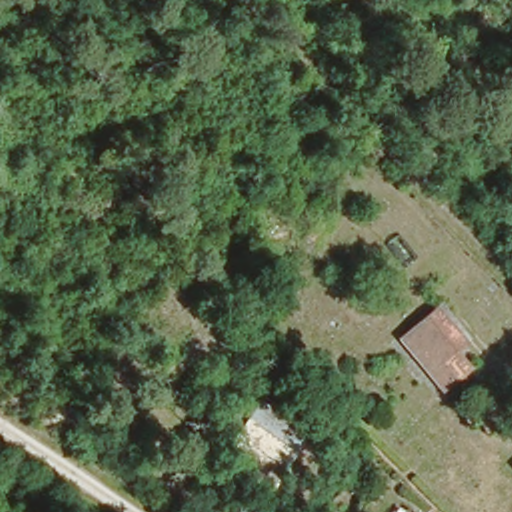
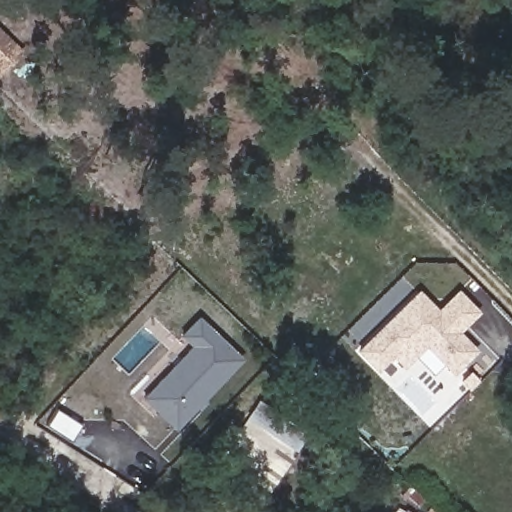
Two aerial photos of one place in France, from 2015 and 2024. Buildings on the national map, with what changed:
new [(417,290),(437,310),(457,289),(480,312),(460,332),(478,351),(452,375),(443,365),(432,375),(415,357),(403,369),(392,357),(376,372),(356,350),(417,290)]
new [(190,348),(180,337),(199,315),(244,360),(175,431),(141,398),(190,348)]
demolished [(426,374),(397,344),(394,341),(420,320),(450,353),(426,374)]
new [(281,475),(295,485),(282,503),(219,456),(259,400),(308,436),(281,475)]
unchanged [(403,508),(411,512),(401,512),(403,508)]

